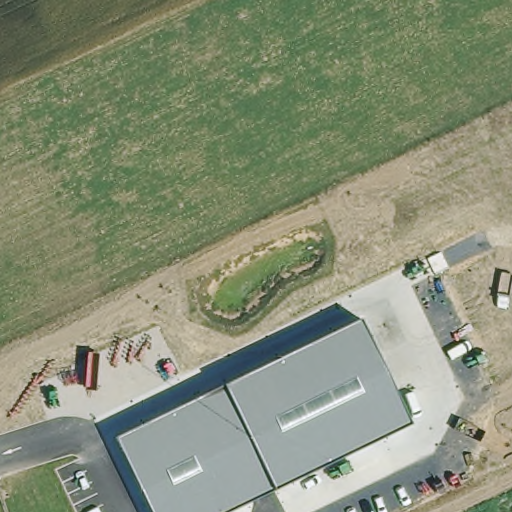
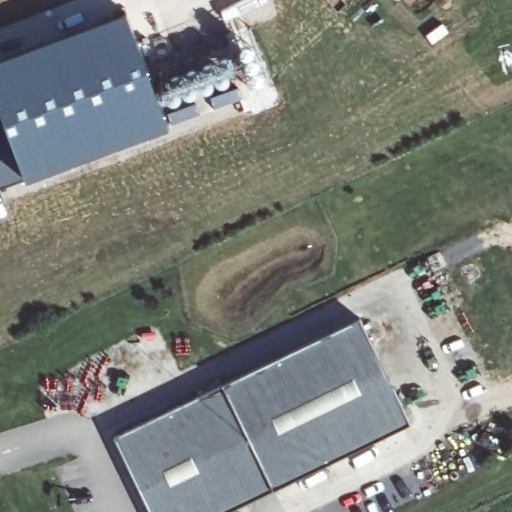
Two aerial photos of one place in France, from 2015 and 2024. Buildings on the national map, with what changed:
new [(0,190),(0,61),(127,14),(169,128),(0,190)]
new [(156,80),(257,41),(270,80),(251,88),(247,77),(166,107),(156,80)]
unchanged [(362,319),(411,423),(275,489),(227,512),(152,512),(115,438),(225,386),(362,319)]

